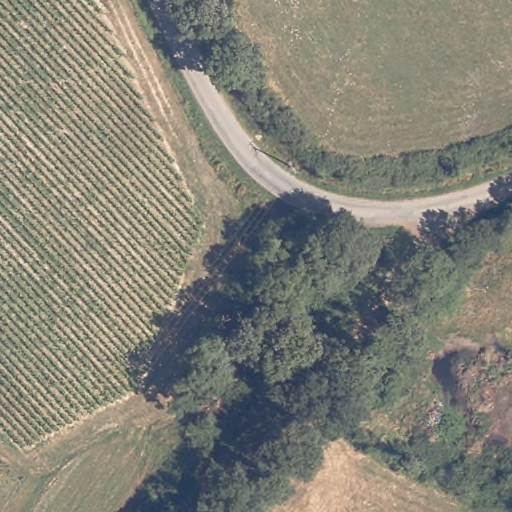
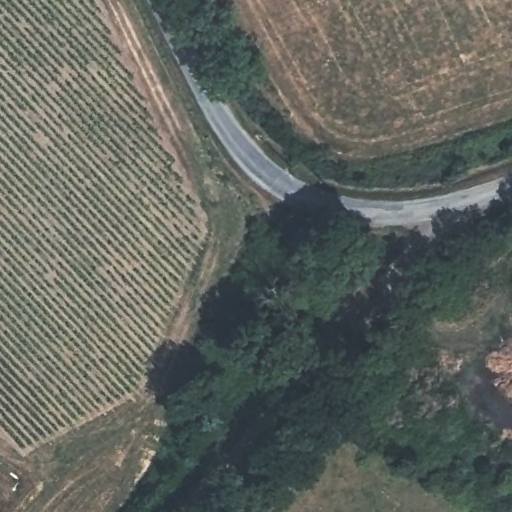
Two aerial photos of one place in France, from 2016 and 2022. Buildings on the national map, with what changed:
unchanged [(150,341),(139,358),(122,347),(134,330),(150,341)]

